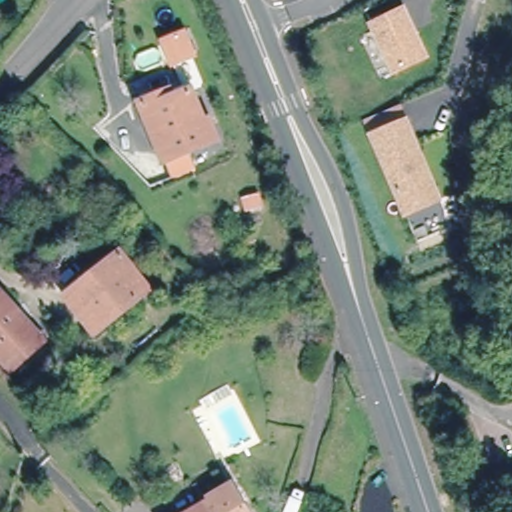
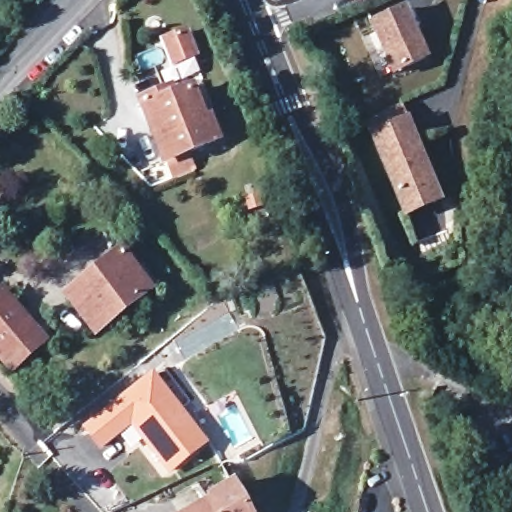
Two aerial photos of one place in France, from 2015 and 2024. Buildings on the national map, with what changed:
unchanged [(432,59),(393,79),(368,22),(406,5),(432,59)]
unchanged [(181,33),(192,56),(173,65),(163,42),(181,33)]
unchanged [(159,95),(163,102),(190,90),(203,122),(207,119),(215,140),(163,162),(138,104),(159,95)]
unchanged [(408,208),(370,121),(400,109),(403,107),(405,106),(412,122),(407,125),(414,140),(414,139),(438,195),(441,202),(411,215),(408,208)]
unchanged [(147,292),(92,336),(77,316),(62,297),(117,254),(147,292)]
unchanged [(9,362),(0,351),(0,291),(39,334),(9,362)]
new [(80,429),(151,372),(208,442),(169,475),(129,427),(99,452),(80,429)]
unchanged [(207,504),(204,499),(227,486),(244,512),(195,512),(207,504)]

